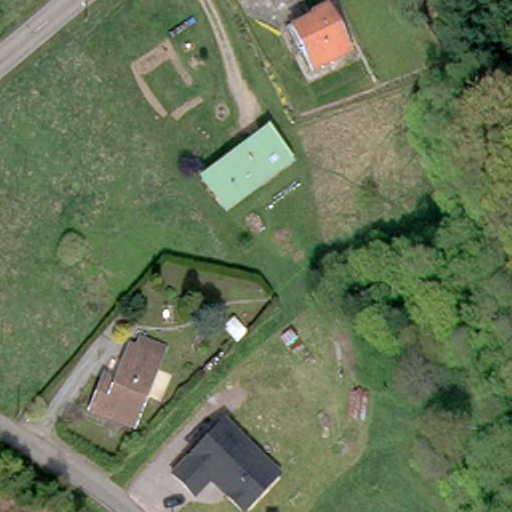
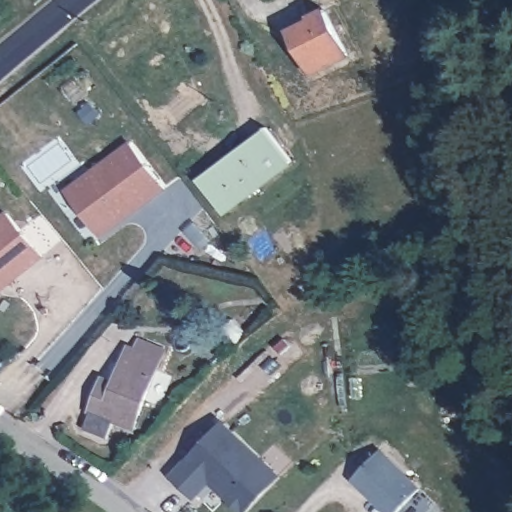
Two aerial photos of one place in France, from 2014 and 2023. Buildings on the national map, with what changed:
unchanged [(307,19),(305,15),(321,9),(341,54),(303,70),(294,49),(297,47),(287,27),(307,19)]
unchanged [(264,127),(285,157),(217,205),(196,175),(264,127)]
new [(167,188),(101,236),(64,189),(130,140),(167,188)]
new [(0,292),(0,214),(7,209),(45,257),(0,292)]
unchanged [(89,410),(101,378),(112,383),(127,345),(134,348),(139,337),(163,348),(159,358),(132,427),(89,410)]
unchanged [(220,428),(275,480),(246,512),(235,512),(223,501),(227,497),(211,482),(192,502),(170,482),(220,428)]
new [(422,487),(397,512),(383,512),(351,480),(382,448),(422,487)]

